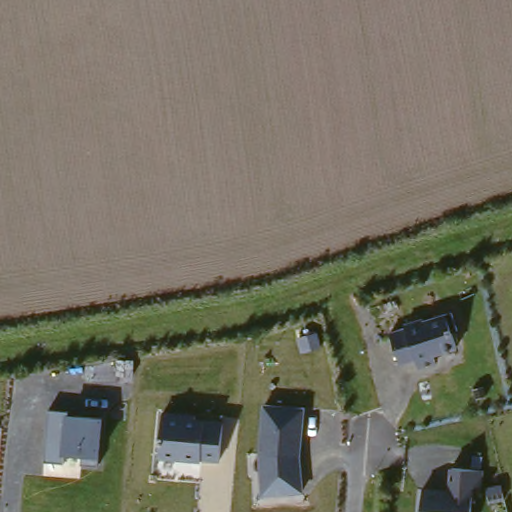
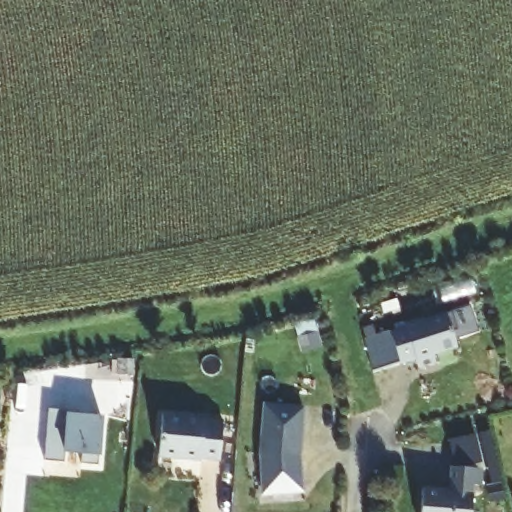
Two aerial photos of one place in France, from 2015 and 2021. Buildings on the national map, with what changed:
unchanged [(433,354),(434,361),(419,366),(417,357),(401,362),(394,332),(404,329),(403,322),(447,313),(458,349),(433,354)]
unchanged [(300,451),(304,491),(263,496),(259,449),(264,403),(307,407),(300,451)]
unchanged [(99,464),(83,462),(83,457),(64,456),(64,462),(46,459),(50,412),(67,414),(104,417),(99,464)]
unchanged [(219,454),(198,452),(198,458),(159,454),(162,412),(196,415),(196,419),(222,422),(219,454)]
unchanged [(481,486),(472,487),(469,512),(420,512),(422,486),(447,488),(449,464),(481,467),(481,486)]

